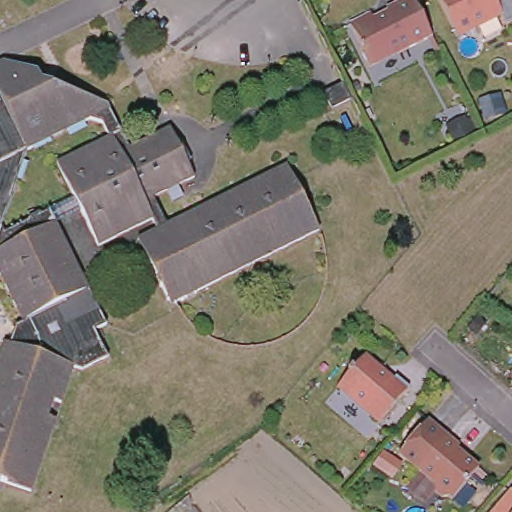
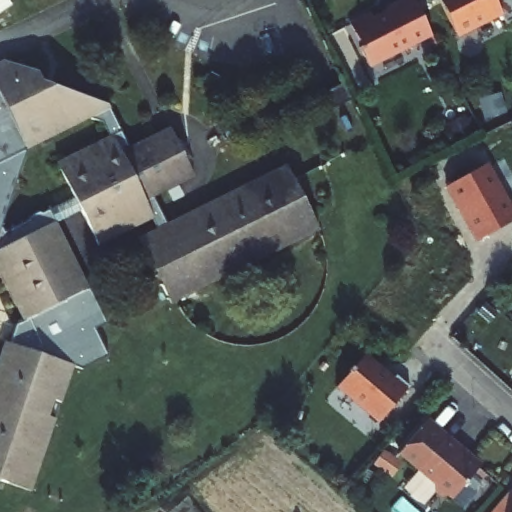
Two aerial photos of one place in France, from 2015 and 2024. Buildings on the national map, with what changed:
unchanged [(397,53),(367,67),(358,48),(361,46),(350,22),(371,13),(375,21),(389,13),(389,11),(410,0),(412,0),(432,39),(398,55),(397,53)]
unchanged [(496,0),(502,11),(457,34),(440,0),(496,0)]
unchanged [(61,225),(93,292),(95,291),(113,326),(102,331),(114,356),(89,369),(78,365),(66,401),(60,399),(54,416),(60,419),(37,490),(6,480),(1,483),(0,480),(0,369),(9,342),(14,343),(20,326),(26,322),(0,269),(0,65),(9,61),(43,72),(47,81),(113,104),(136,147),(176,127),(181,138),(188,140),(198,159),(194,166),(199,176),(160,196),(173,223),(291,165),(306,195),(311,196),(309,202),(323,229),(174,303),(152,258),(142,238),(161,229),(157,220),(103,247),(86,213),(61,225)]
unchanged [(352,100),(332,109),(324,93),(344,82),(352,100)]
unchanged [(459,136),(453,124),(471,115),(478,128),(459,136)]
new [(488,164),(512,206),(512,222),(475,243),(444,188),(488,164)]
unchanged [(338,386),(364,355),(392,379),(395,377),(407,388),(378,422),(338,386)]
demolished [(512,395),(512,402),(509,400),(512,395)]
new [(420,473),(398,455),(426,424),(447,440),(420,473)]
unchanged [(447,440),(460,451),(458,455),(479,474),(454,504),(450,500),(444,501),(437,495),(437,489),(420,473),(447,440)]
new [(509,490),(512,492),(512,512),(490,512),(509,490)]
new [(196,503),(203,512),(186,512),(196,503)]

